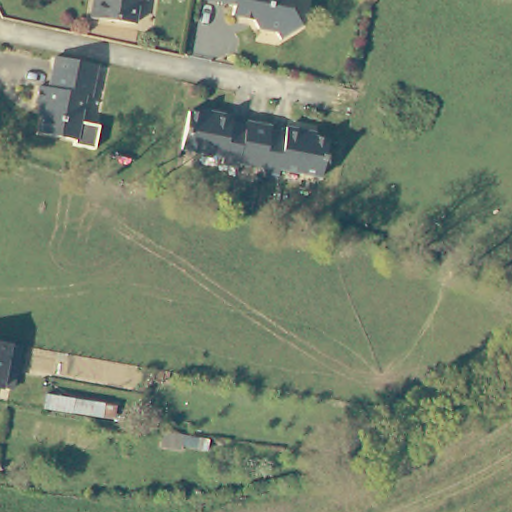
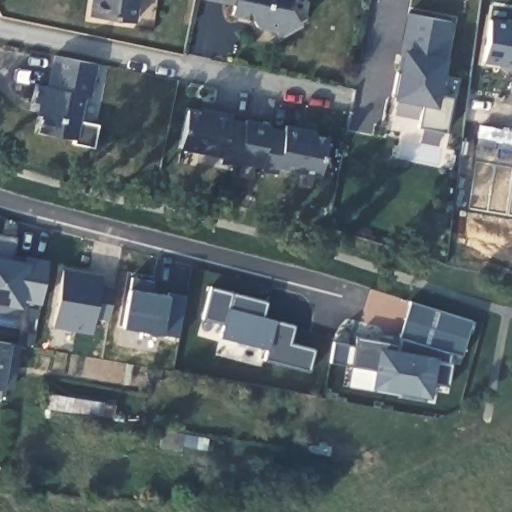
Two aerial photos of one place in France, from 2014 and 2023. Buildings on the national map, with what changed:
unchanged [(140,20),(96,17),(98,0),(143,0),(140,20)]
unchanged [(296,12),(305,26),(286,39),(277,29),(266,28),(257,17),(236,13),(237,2),(229,0),(297,0),(296,12)]
new [(448,56),(441,97),(453,100),(447,132),(421,127),(423,106),(393,99),(402,54),(400,54),(407,13),(454,21),(448,56)]
new [(512,21),(512,65),(485,61),(491,18),(512,21)]
unchanged [(99,66),(92,99),(87,97),(82,123),(101,127),(96,150),(76,146),(77,141),(42,134),(47,106),(37,105),(42,87),(51,89),(57,58),(99,66)]
unchanged [(231,114),(230,122),(244,124),(245,119),(271,123),(272,129),(285,131),(286,126),(302,130),(305,134),(328,138),(320,178),(279,169),(277,176),(262,173),(262,169),(237,164),(236,169),(222,166),(223,159),(182,151),(191,111),(214,115),(215,111),(231,114)]
new [(13,256),(47,261),(40,300),(20,297),(17,315),(0,313),(0,235),(15,237),(13,256)]
new [(154,282),(152,289),(187,297),(180,336),(123,328),(131,278),(154,282)]
new [(268,305),(263,316),(295,324),(289,342),(315,347),(307,370),(265,360),(267,346),(223,336),(223,324),(204,319),(210,287),(268,305)]
new [(337,341),(354,346),(356,336),(398,344),(410,300),(473,321),(462,355),(452,353),(448,362),(453,364),(450,387),(430,383),(427,399),(403,395),(402,388),(377,384),(377,370),(329,364),(335,341),(337,341)]
unchanged [(2,386),(0,386),(0,341),(9,342),(2,386)]
unchanged [(185,433),(183,449),(162,446),(165,430),(185,433)]

